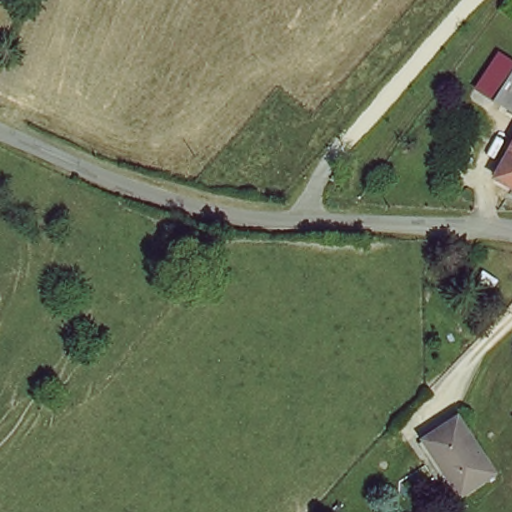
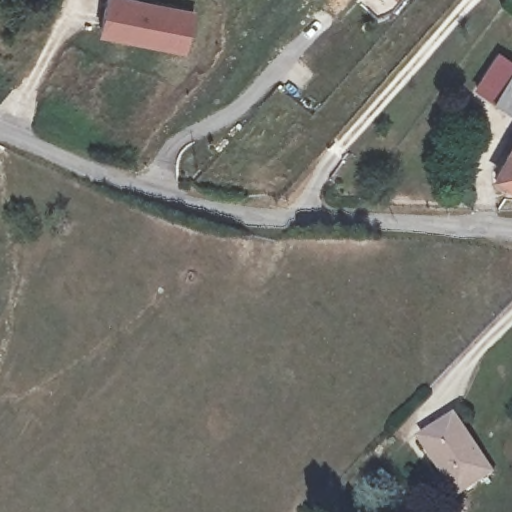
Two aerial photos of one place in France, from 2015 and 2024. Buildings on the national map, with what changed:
new [(108,0),(153,0),(196,10),(186,54),(100,33),(108,0)]
unchanged [(500,94),(481,78),(502,49),(512,56),(512,111),(497,100),(500,94)]
unchanged [(512,159),(512,188),(500,182),(512,159)]
unchanged [(451,497),(424,442),(456,426),(485,481),(451,497)]

